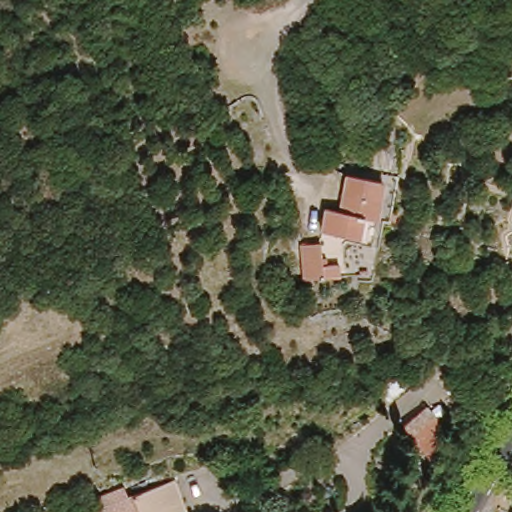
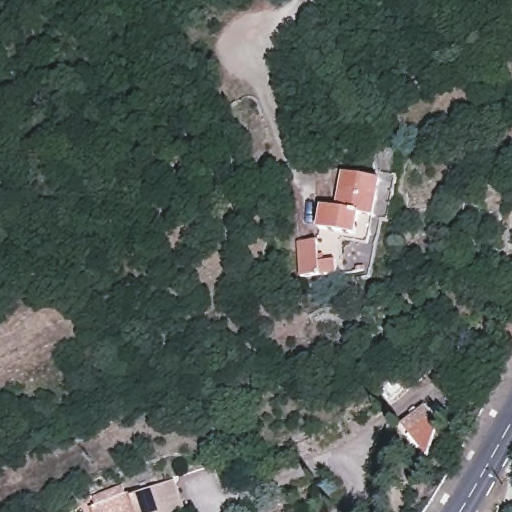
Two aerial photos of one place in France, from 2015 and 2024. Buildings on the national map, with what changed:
unchanged [(326,203),(342,204),(347,172),(386,178),(379,216),(366,218),(363,234),(323,228),(326,203)]
unchanged [(339,259),(339,274),(299,273),(300,234),(322,234),(322,258),(339,259)]
unchanged [(429,417),(442,437),(428,469),(404,433),(429,417)]
unchanged [(174,482),(185,512),(134,512),(130,498),(174,482)]
unchanged [(78,503),(91,498),(93,503),(128,492),(130,498),(134,512),(81,512),(78,503)]

